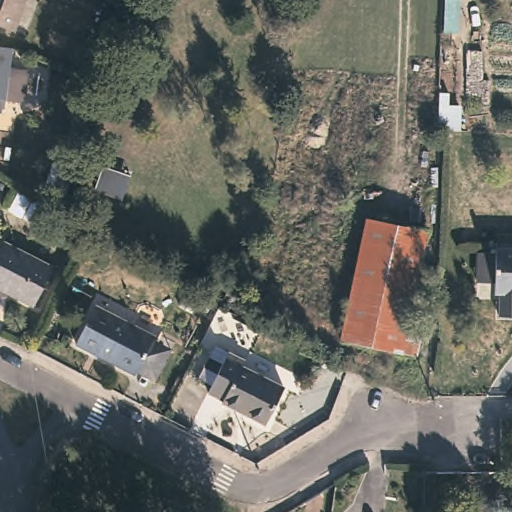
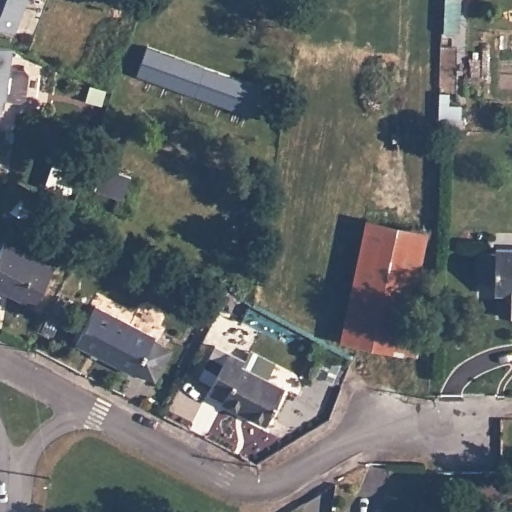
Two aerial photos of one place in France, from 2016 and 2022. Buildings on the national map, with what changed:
unchanged [(14,31),(0,25),(0,0),(25,0),(14,31)]
demolished [(138,4),(128,0),(139,0),(138,4)]
unchanged [(3,100),(2,113),(0,112),(0,45),(12,47),(11,52),(6,100),(3,100)]
new [(145,46),(263,87),(252,118),(135,76),(145,46)]
unchanged [(362,216),(422,230),(400,330),(415,333),(410,353),(336,335),(362,216)]
unchanged [(32,309),(0,292),(0,253),(3,247),(51,273),(32,309)]
unchanged [(501,296),(501,286),(484,285),(485,257),(502,258),(503,255),(512,255),(512,296),(501,296)]
unchanged [(155,383),(139,374),(137,377),(77,346),(97,307),(156,339),(155,343),(171,353),(155,383)]
unchanged [(246,363),(244,368),(286,391),(266,429),(222,406),(225,403),(209,395),(230,355),(246,363)]

